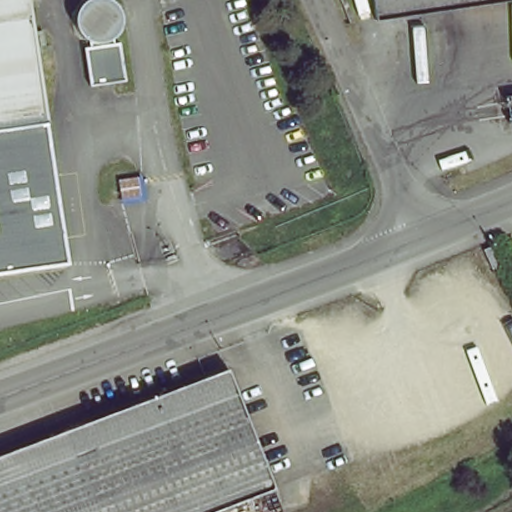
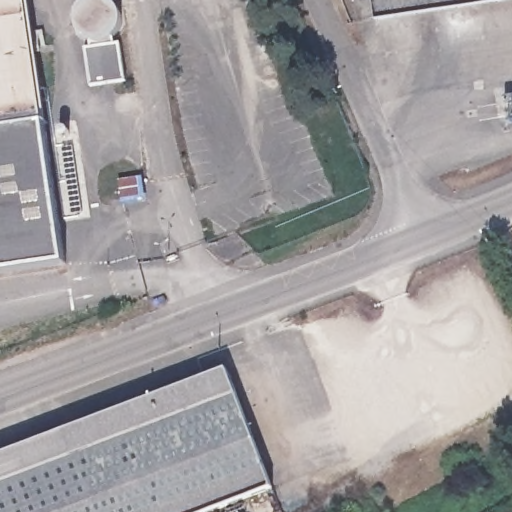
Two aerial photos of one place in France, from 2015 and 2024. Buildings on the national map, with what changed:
unchanged [(47,118),(0,125),(0,0),(30,0),(47,118)]
unchanged [(88,84),(80,44),(89,42),(86,37),(82,33),(75,21),(78,7),(83,0),(116,0),(123,6),(126,24),(116,35),(125,79),(88,84)]
unchanged [(374,0),(512,0),(512,5),(380,27),(374,0)]
unchanged [(47,118),(47,121),(67,263),(0,273),(0,125),(47,118)]
unchanged [(495,279),(484,284),(477,273),(490,267),(495,279)]
unchanged [(329,470),(218,512),(0,512),(0,459),(280,354),(329,470)]

